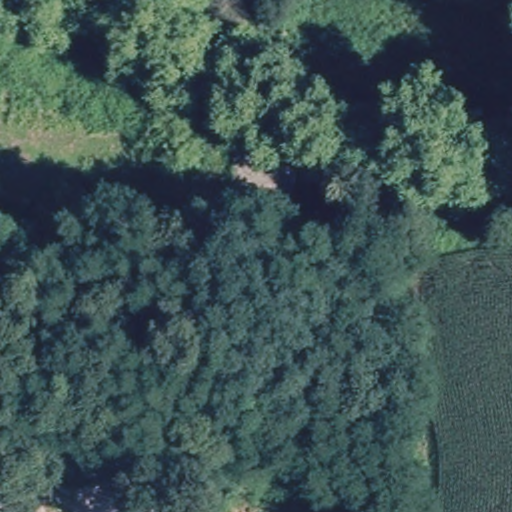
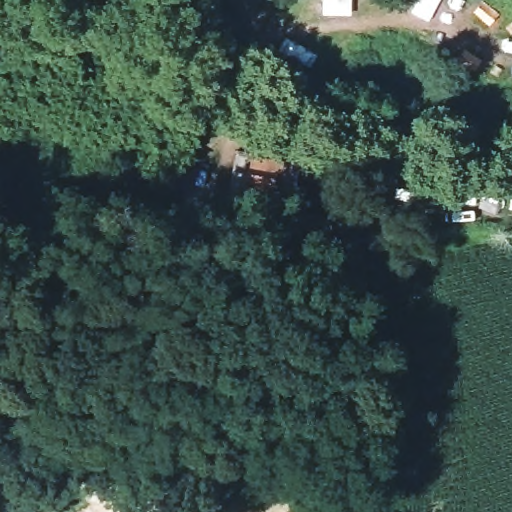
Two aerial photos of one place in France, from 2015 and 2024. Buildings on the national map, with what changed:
unchanged [(235,147),(300,160),(288,217),(226,204),(235,147)]

